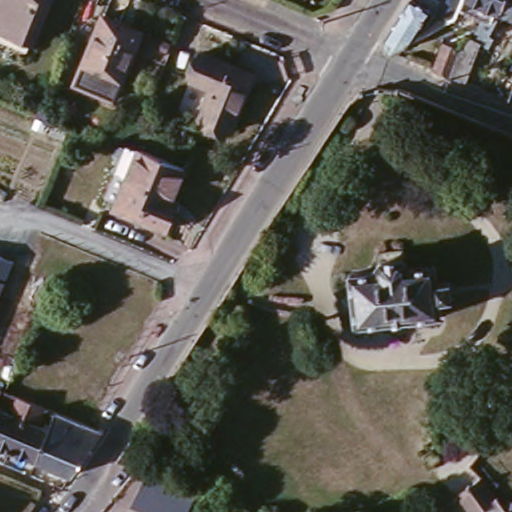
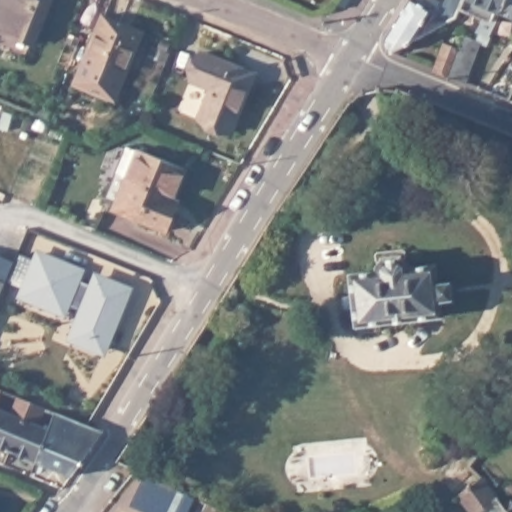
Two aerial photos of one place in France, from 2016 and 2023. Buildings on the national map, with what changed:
unchanged [(3,0),(44,0),(50,2),(30,51),(0,39),(0,6),(3,0)]
unchanged [(430,15),(440,1),(451,9),(448,16),(384,50),(377,47),(376,41),(403,0),(409,0),(430,15)]
unchanged [(441,73),(425,66),(435,41),(451,47),(457,35),(470,40),(473,33),(469,32),(473,19),(451,9),(455,0),(497,0),(491,12),(482,36),(485,37),(481,46),(472,42),(457,79),(441,73)]
unchanged [(512,20),(491,12),(497,0),(512,0),(512,20)]
unchanged [(91,82),(95,72),(96,70),(79,63),(100,15),(140,31),(118,82),(114,80),(110,90),(91,82)]
unchanged [(192,79),(204,52),(255,73),(233,131),(199,117),(210,87),(192,79)]
unchanged [(93,140),(89,152),(73,146),(77,134),(93,140)]
unchanged [(116,216),(120,206),(108,202),(127,151),(140,157),(140,154),(186,171),(174,202),(180,205),(166,235),(116,216)]
unchanged [(17,252),(8,275),(0,293),(0,245),(17,252)]
new [(73,338),(83,311),(67,304),(62,312),(21,296),(38,256),(79,272),(75,278),(95,284),(97,278),(125,289),(101,350),(73,338)]
unchanged [(435,287),(447,286),(449,305),(437,306),(438,321),(351,331),(345,277),(372,273),(371,268),(376,263),(398,262),(404,267),(405,271),(433,267),(435,287)]
unchanged [(30,412),(20,431),(17,428),(2,460),(0,458),(0,419),(4,421),(11,405),(30,412)]
unchanged [(64,486),(29,471),(2,460),(17,428),(20,431),(30,412),(38,416),(32,432),(42,437),(50,420),(81,433),(97,440),(85,457),(66,486),(64,486)]
unchanged [(496,499),(480,512),(471,512),(456,495),(480,476),(496,499)]
unchanged [(191,512),(142,512),(136,510),(144,495),(140,493),(147,478),(196,502),(191,512)]
unchanged [(200,512),(205,503),(222,512),(200,512)]

